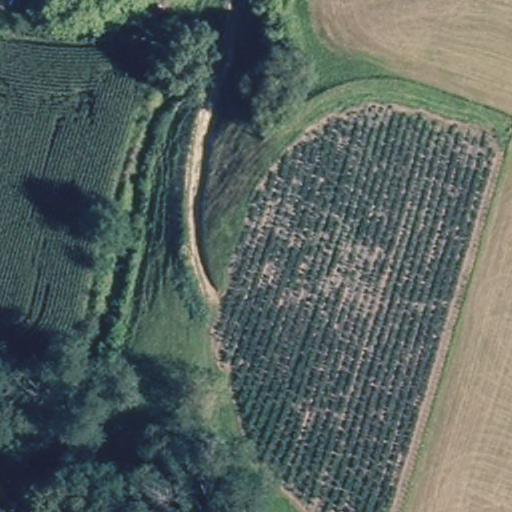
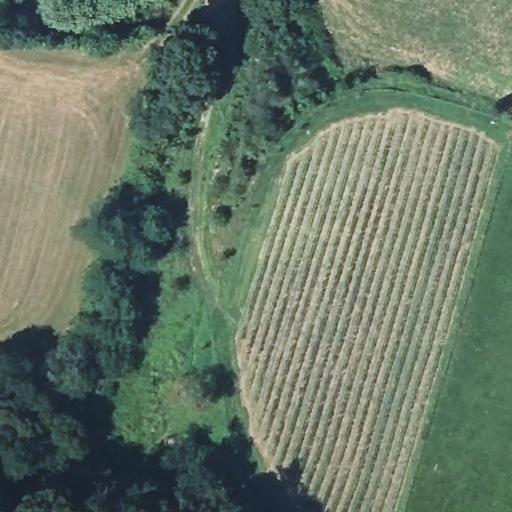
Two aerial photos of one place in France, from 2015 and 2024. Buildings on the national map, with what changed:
[]

